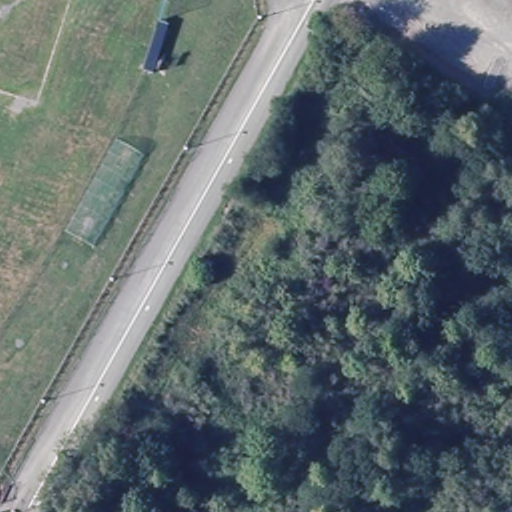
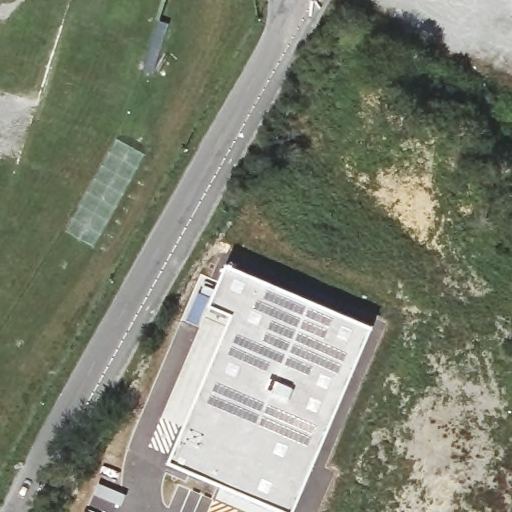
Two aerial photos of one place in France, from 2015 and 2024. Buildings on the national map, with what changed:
new [(228,316),(206,306),(226,261),(373,326),(294,512),(281,512),(231,490),(166,463),(228,316)]

